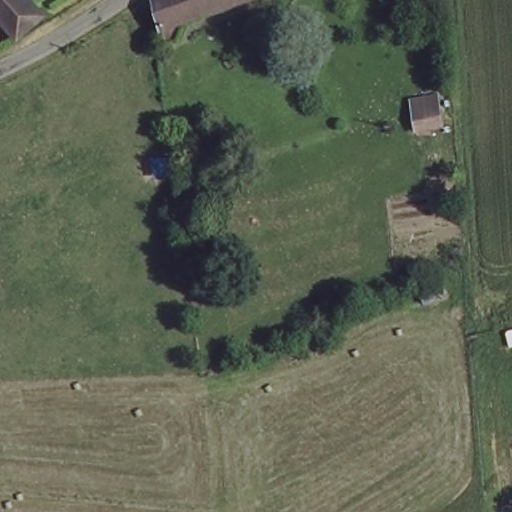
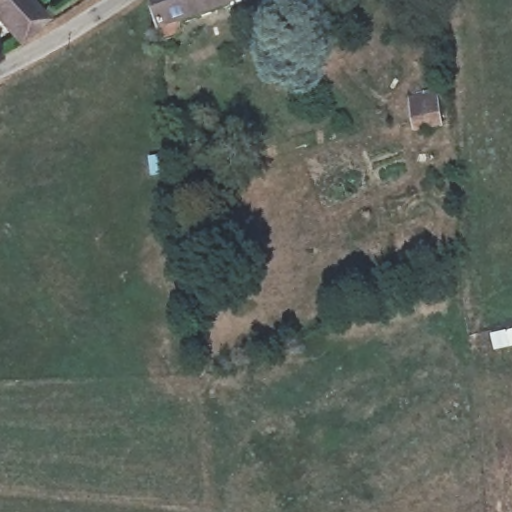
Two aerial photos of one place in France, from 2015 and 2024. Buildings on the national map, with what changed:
unchanged [(0,21),(0,0),(29,0),(43,15),(18,40),(0,21)]
unchanged [(171,31),(158,39),(150,0),(222,0),(181,15),(171,31)]
unchanged [(441,103),(442,120),(411,124),(409,107),(441,103)]

